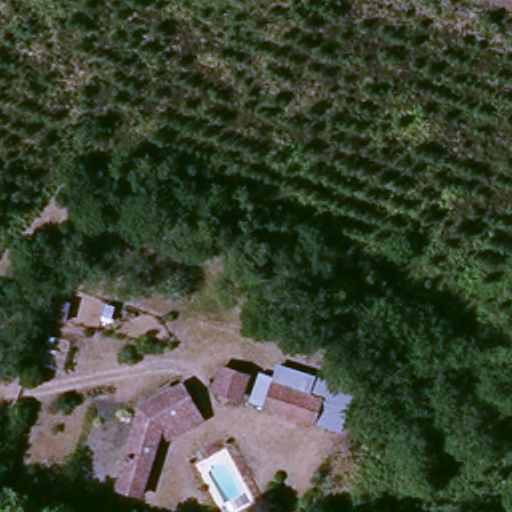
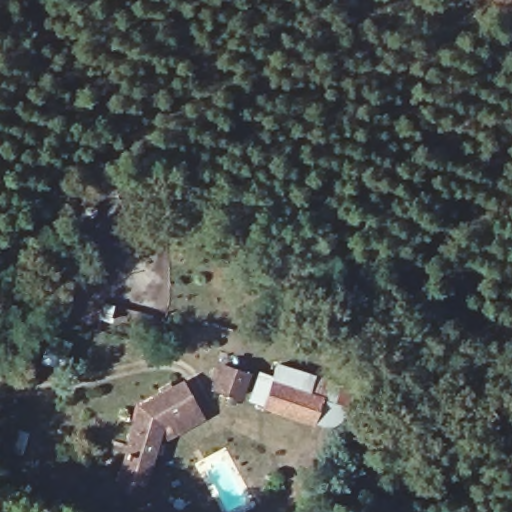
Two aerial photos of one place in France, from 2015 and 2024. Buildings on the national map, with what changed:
unchanged [(274,396),(223,382),(229,356),(348,398),(344,415),(274,396)]
unchanged [(117,481),(141,403),(182,377),(194,402),(201,415),(167,434),(159,424),(139,493),(117,481)]
unchanged [(335,429),(271,414),(274,396),(344,415),(340,431),(335,429)]

